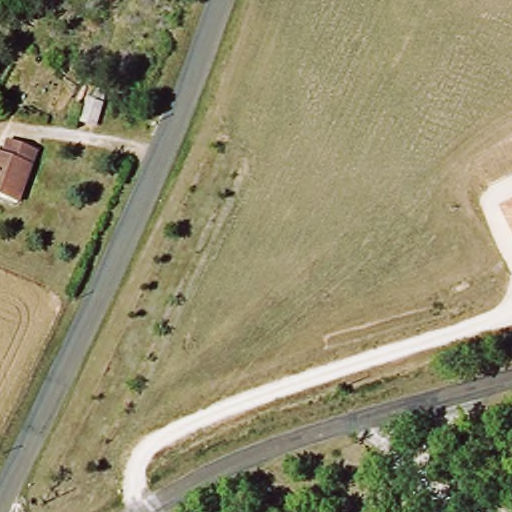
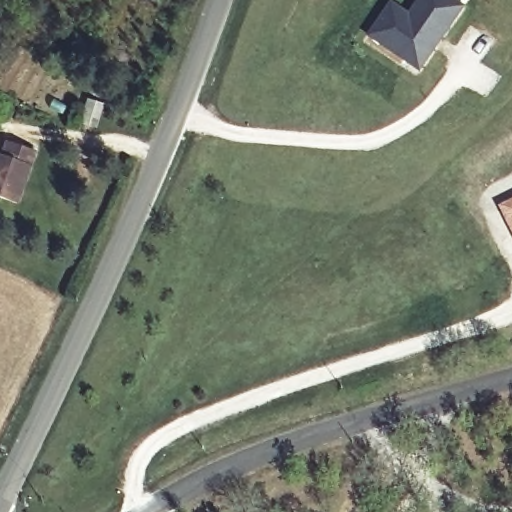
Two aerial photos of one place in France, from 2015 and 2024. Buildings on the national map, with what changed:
new [(388,2),(410,15),(420,0),(452,0),(465,9),(422,75),(366,40),(388,2)]
unchanged [(95,91),(108,95),(100,117),(87,113),(95,91)]
unchanged [(6,155),(10,144),(35,154),(15,205),(0,200),(0,154),(6,155)]
unchanged [(512,235),(499,207),(512,201),(512,235)]

